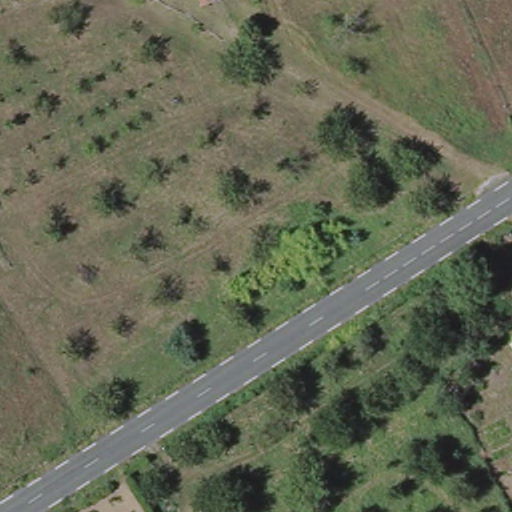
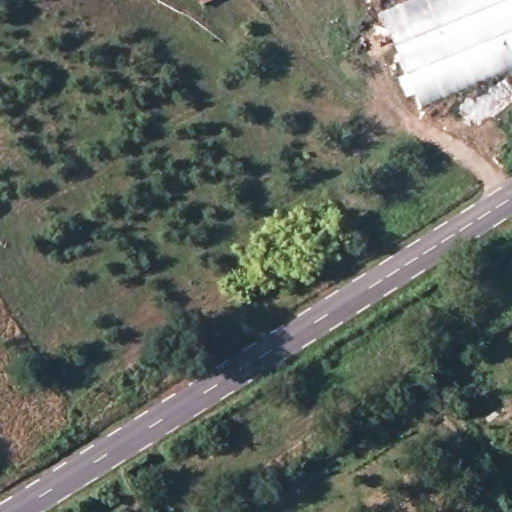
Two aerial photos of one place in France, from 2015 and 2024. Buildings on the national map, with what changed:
unchanged [(200,8),(196,0),(212,0),(213,2),(200,8)]
new [(408,0),(512,0),(512,69),(503,72),(420,109),(415,94),(405,97),(398,78),(405,75),(378,11),(408,0)]

